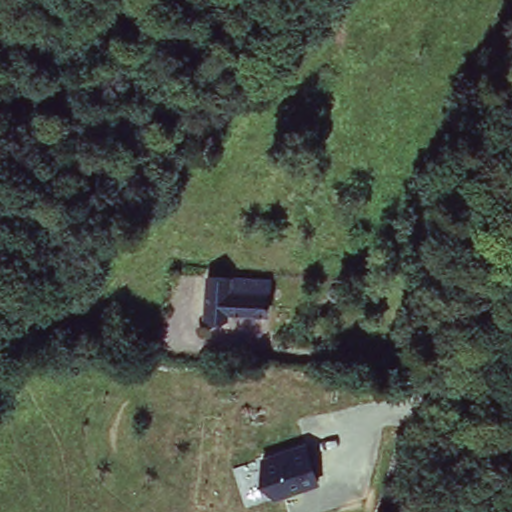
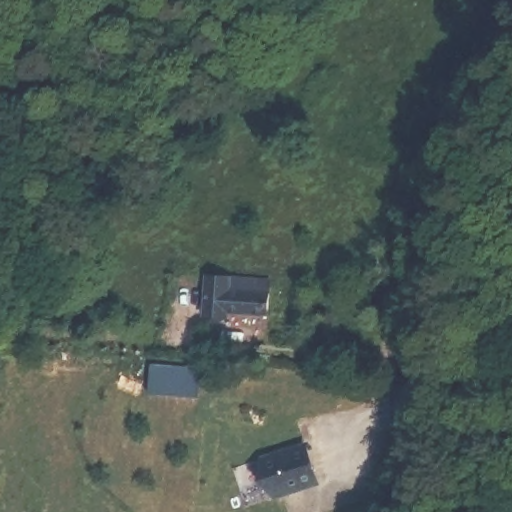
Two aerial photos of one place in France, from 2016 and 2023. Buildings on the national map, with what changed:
unchanged [(239,275),(239,292),(234,293),(235,318),(222,318),(222,321),(201,318),(205,275),(239,275)]
unchanged [(234,293),(239,292),(239,275),(275,275),(273,317),(235,318),(234,293)]
new [(154,365),(202,368),(200,401),(151,398),(154,365)]
unchanged [(274,498),(260,458),(305,441),(320,484),(274,498)]

